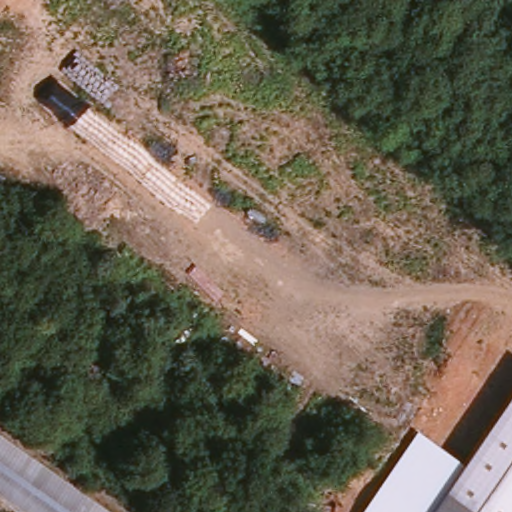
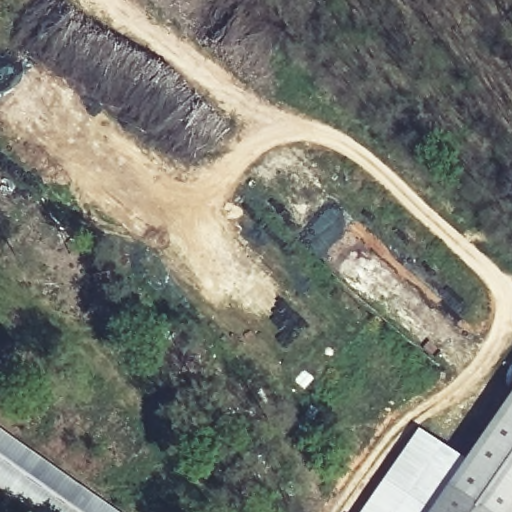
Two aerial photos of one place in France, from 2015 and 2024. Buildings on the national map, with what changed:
unchanged [(465,461),(512,394),(512,512),(479,512),(446,488),(465,461)]
unchanged [(0,490),(0,430),(116,512),(33,512),(0,490)]
unchanged [(446,488),(430,512),(362,512),(420,430),(465,461),(446,488)]
unchanged [(446,488),(479,512),(430,512),(446,488)]

